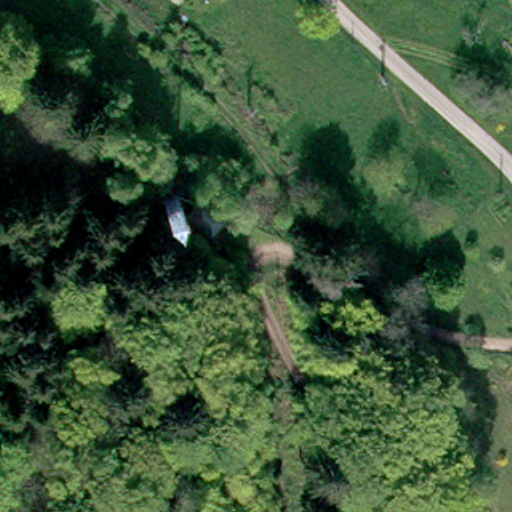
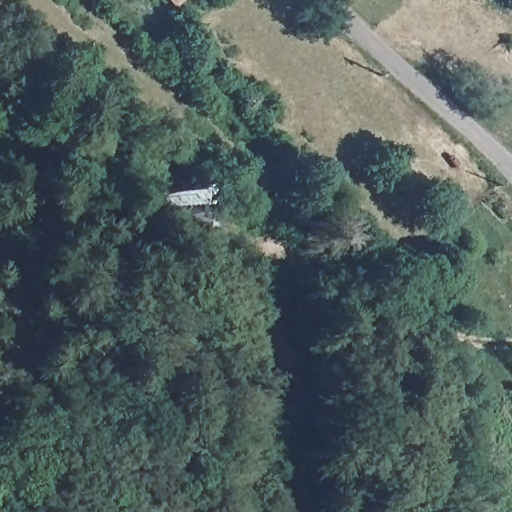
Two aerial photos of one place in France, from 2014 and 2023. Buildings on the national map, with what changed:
unchanged [(177,5),(175,0),(187,0),(177,5)]
unchanged [(234,210),(219,224),(194,198),(210,184),(234,210)]

